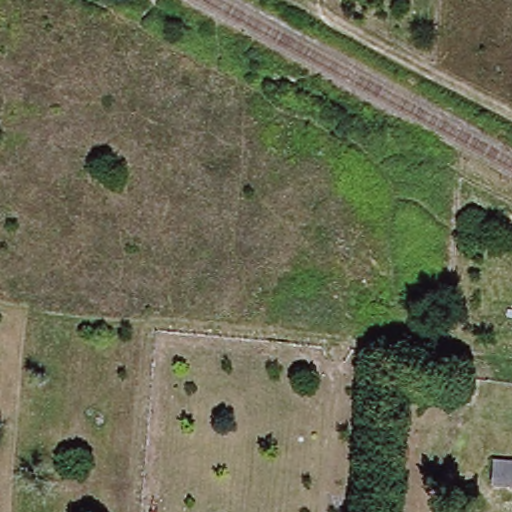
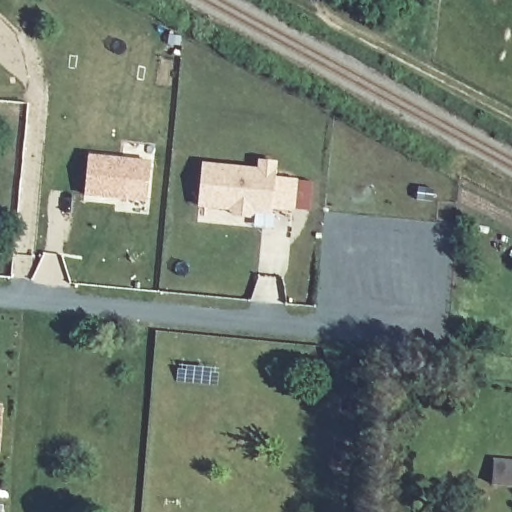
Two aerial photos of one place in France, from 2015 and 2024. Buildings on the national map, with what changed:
new [(87,153),(152,160),(146,202),(83,196),(87,153)]
new [(260,169),(260,161),(275,164),(271,213),(255,212),(250,218),(232,216),(228,209),(200,207),(204,165),(260,169)]
unchanged [(496,480),(500,455),(512,457),(512,482),(496,480)]

